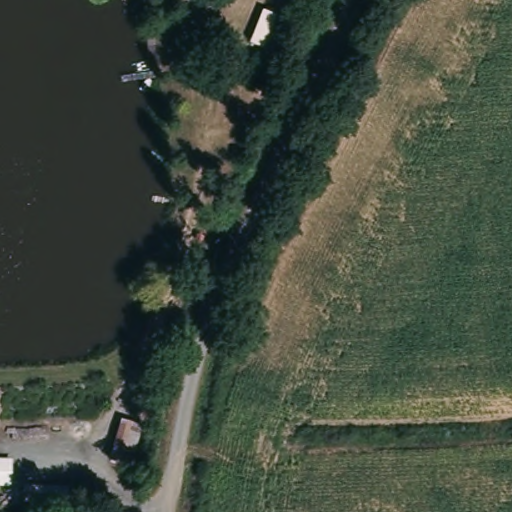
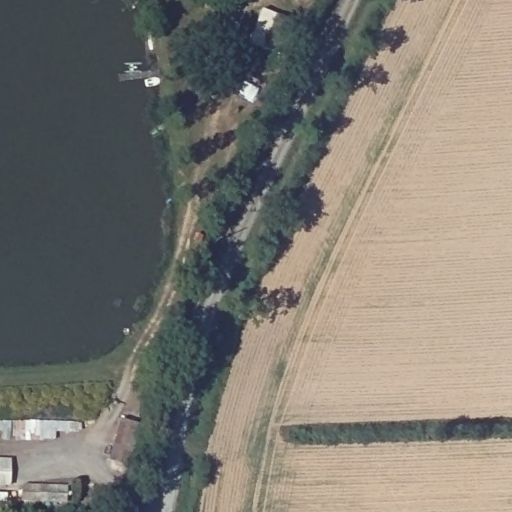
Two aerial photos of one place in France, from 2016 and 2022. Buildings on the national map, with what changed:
unchanged [(283,16),(299,23),(280,68),(261,59),(283,16)]
unchanged [(68,486),(67,501),(22,500),(22,485),(68,486)]

